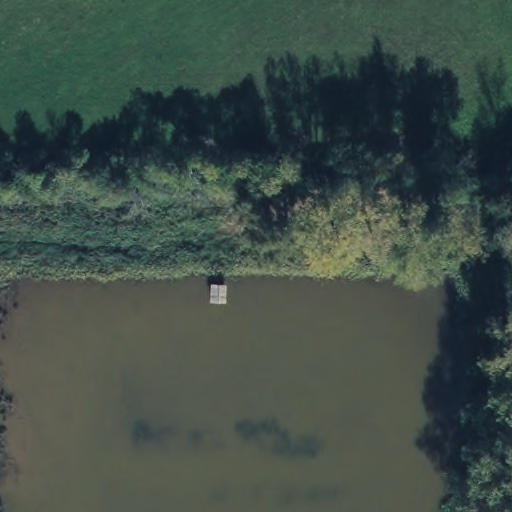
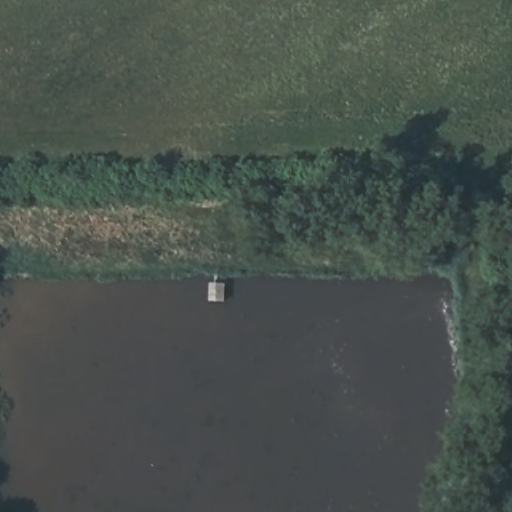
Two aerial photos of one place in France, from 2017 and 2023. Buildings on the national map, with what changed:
unchanged [(485,334),(458,340),(455,326),(482,320),(485,334)]

